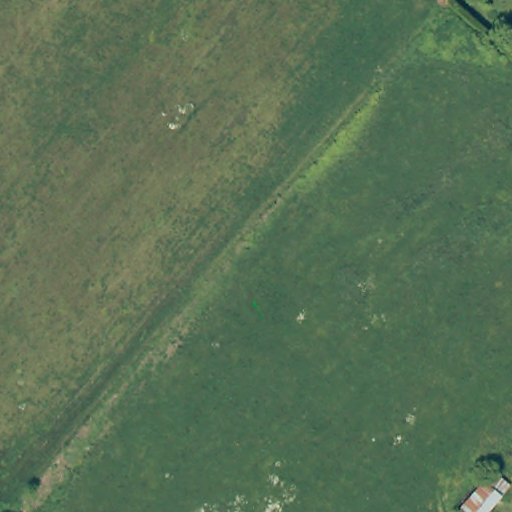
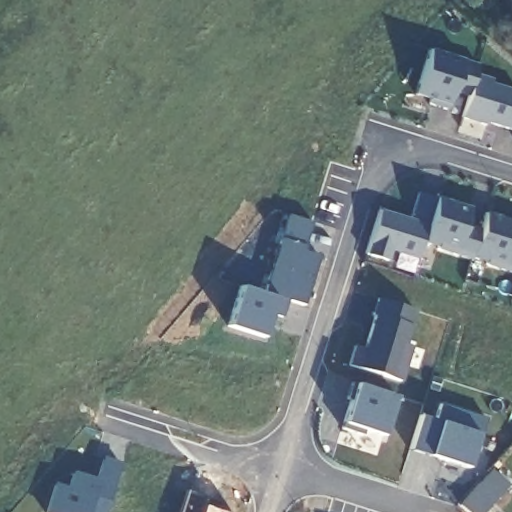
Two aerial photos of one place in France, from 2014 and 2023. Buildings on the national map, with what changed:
new [(482,125),(460,119),(467,97),(453,94),(445,108),(426,104),(427,99),(415,95),(430,50),(477,63),(475,74),(491,78),(490,84),(512,89),(512,131),(484,122),(482,125)]
new [(417,192),(436,197),(468,206),(465,225),(480,229),(483,211),(512,221),(512,274),(484,266),(485,263),(469,258),(466,261),(435,250),(436,247),(423,244),(416,259),(390,252),(386,261),(363,254),(377,209),(407,218),(417,192)]
new [(290,214),(313,222),(303,251),(319,256),(303,305),(263,292),(290,214)]
new [(282,317),(271,313),(263,337),(227,325),(240,285),(287,300),(282,317)]
new [(414,310),(403,343),(410,346),(398,381),(348,365),(354,347),(363,349),(375,315),(372,315),(378,298),(414,310)]
new [(395,396),(383,436),(363,430),(362,435),(341,428),(350,400),(346,399),(352,382),(395,396)]
new [(107,512),(48,512),(57,484),(70,488),(75,472),(90,477),(89,481),(96,483),(104,458),(121,465),(107,512)]
unchanged [(482,480),(491,470),(508,485),(500,495),(482,480)]
unchanged [(481,480),(498,495),(483,512),(467,512),(460,506),(481,480)]

